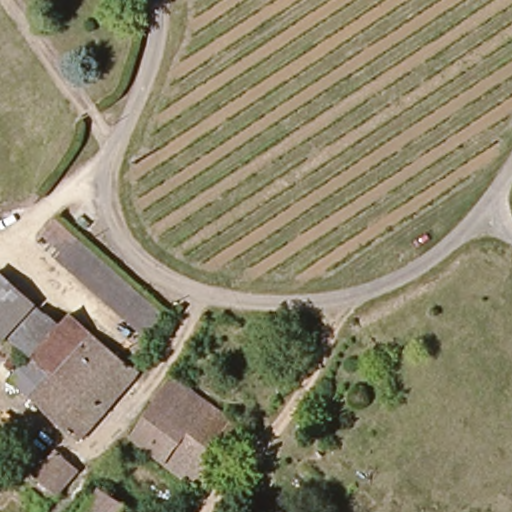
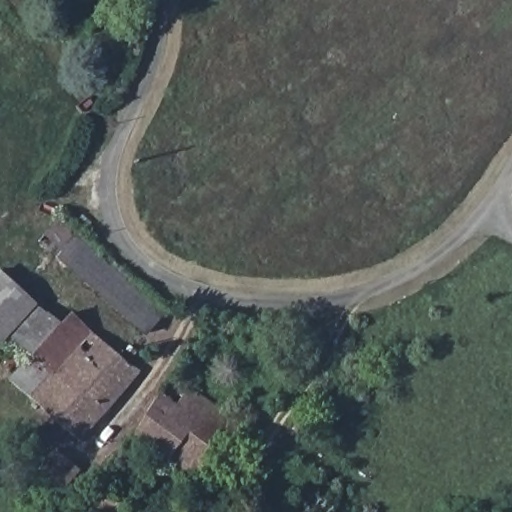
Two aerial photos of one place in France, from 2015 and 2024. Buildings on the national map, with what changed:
unchanged [(62,214),(166,314),(144,337),(42,239),(62,214)]
unchanged [(31,308),(0,344),(0,281),(31,308)]
unchanged [(9,341),(35,312),(58,328),(69,316),(89,333),(52,375),(28,358),(9,341)]
unchanged [(52,375),(89,333),(139,371),(79,439),(9,381),(28,358),(52,375)]
unchanged [(243,427),(236,439),(222,431),(204,457),(217,465),(203,488),(130,433),(170,373),(243,427)]
unchanged [(79,469),(54,495),(32,474),(58,450),(79,469)]
unchanged [(96,482),(119,501),(111,512),(74,512),(72,510),(96,482)]
unchanged [(169,512),(145,512),(143,510),(153,497),(170,509),(169,512)]

